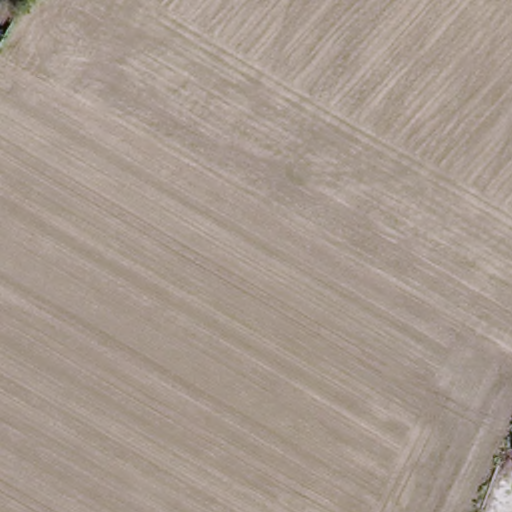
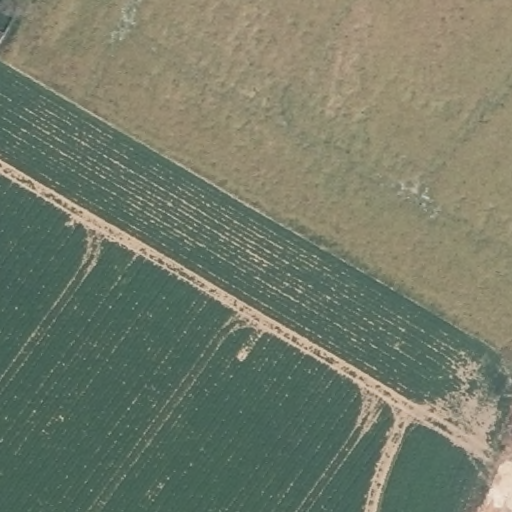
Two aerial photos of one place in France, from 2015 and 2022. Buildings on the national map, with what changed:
unchanged [(0,43),(0,38),(2,39),(0,43)]

